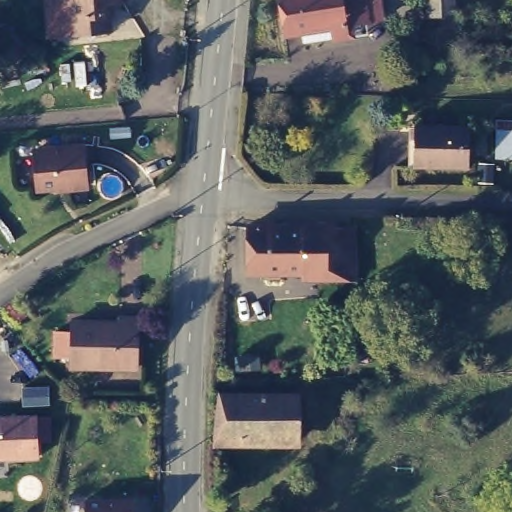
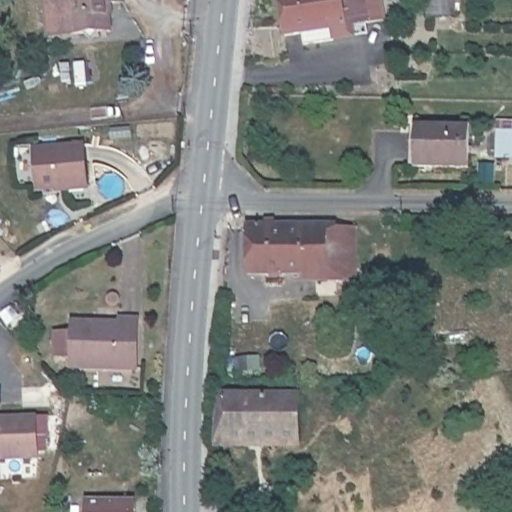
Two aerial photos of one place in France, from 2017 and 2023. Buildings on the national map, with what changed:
unchanged [(106,4),(108,32),(69,34),(67,0),(121,0),(121,3),(106,4)]
unchanged [(306,45),(303,34),(283,37),(276,0),(401,0),(403,16),(384,19),(367,22),(369,33),(334,40),(306,45)]
unchanged [(426,19),(424,0),(460,0),(461,16),(426,19)]
unchanged [(512,160),(494,159),(496,118),(512,118),(512,160)]
unchanged [(467,126),(467,168),(411,166),(410,125),(467,126)]
unchanged [(84,152),(88,191),(38,196),(34,157),(84,152)]
unchanged [(246,271),(246,224),(354,222),(356,269),(246,271)]
unchanged [(118,329),(118,324),(134,324),(133,374),(69,373),(69,328),(118,329)]
unchanged [(301,391),(303,449),(211,446),(217,390),(301,391)]
unchanged [(33,412),(36,454),(0,456),(0,414),(33,412)]
unchanged [(133,506),(133,512),(84,512),(84,506),(133,506)]

